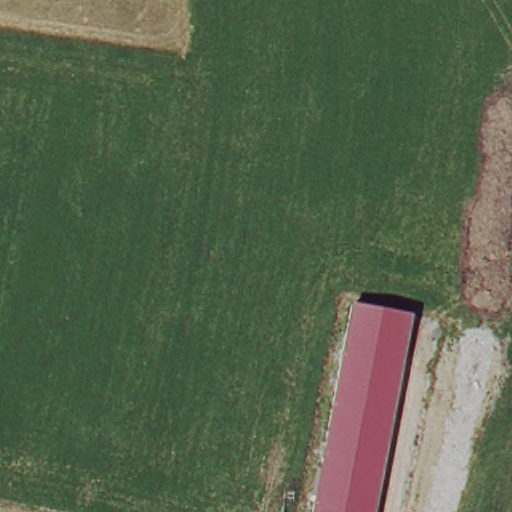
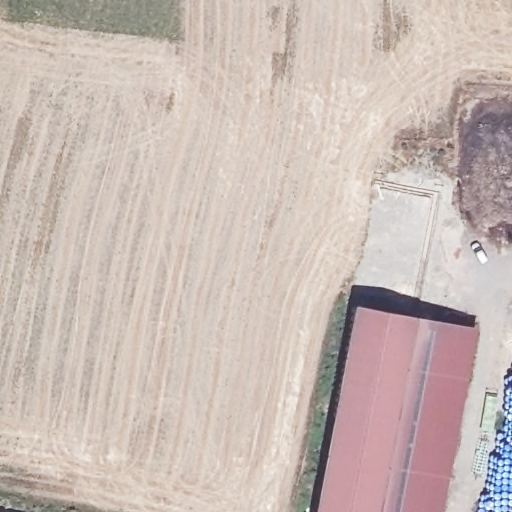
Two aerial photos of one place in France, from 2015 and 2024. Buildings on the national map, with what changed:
unchanged [(356,304),(415,315),(376,512),(315,512),(356,304)]
new [(415,315),(475,327),(442,512),(376,512),(415,315)]

